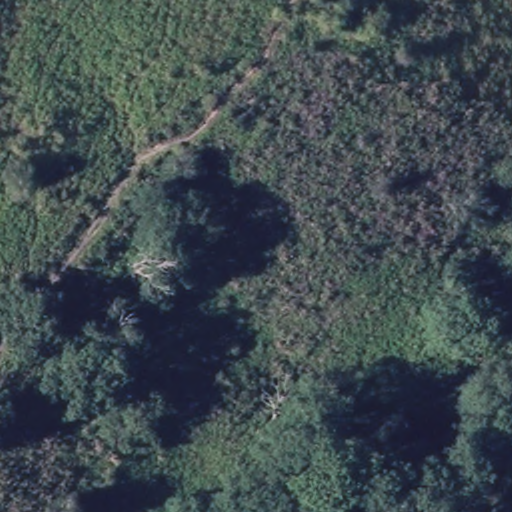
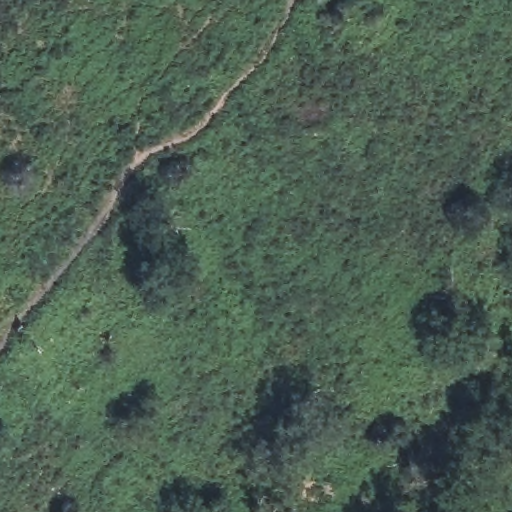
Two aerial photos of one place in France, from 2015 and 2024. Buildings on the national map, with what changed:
[]

